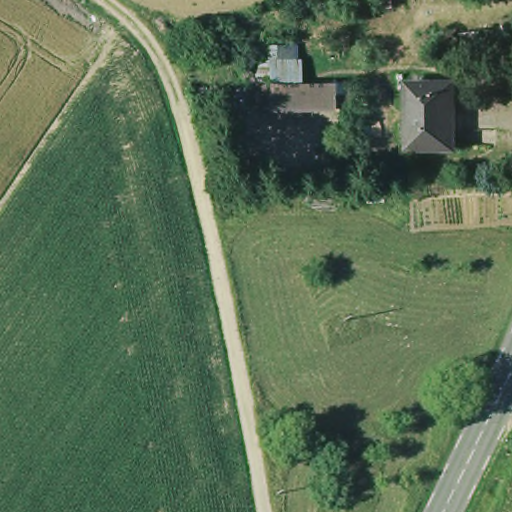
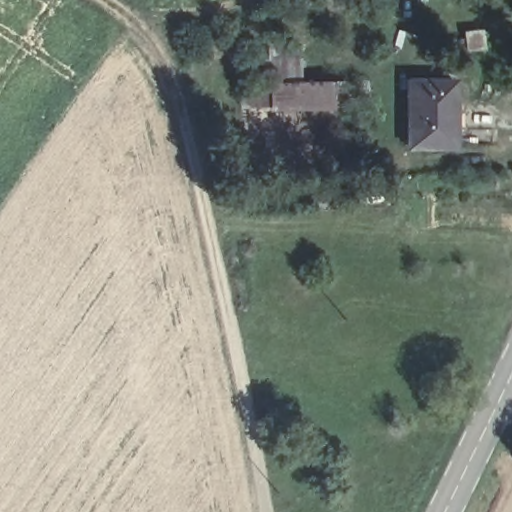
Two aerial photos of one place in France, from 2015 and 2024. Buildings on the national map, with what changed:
unchanged [(341,110),(257,113),(257,83),(341,80),(341,110)]
unchanged [(417,150),(419,83),(464,83),(462,149),(417,150)]

